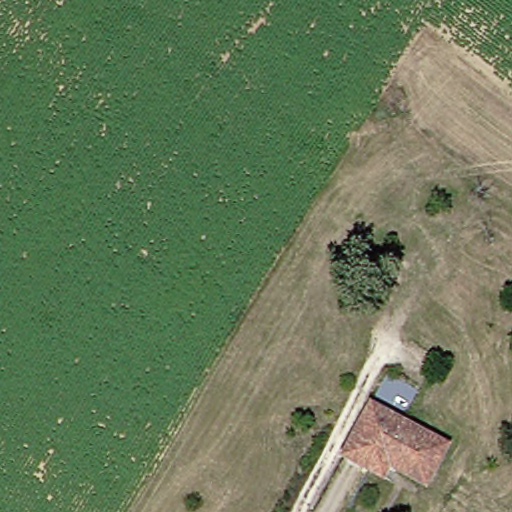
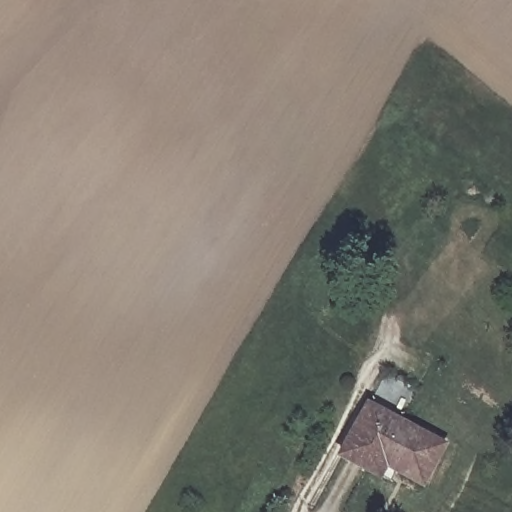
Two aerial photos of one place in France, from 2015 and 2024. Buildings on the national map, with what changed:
unchanged [(385,466),(377,478),(339,457),(367,408),(441,448),(420,485),(385,466)]

